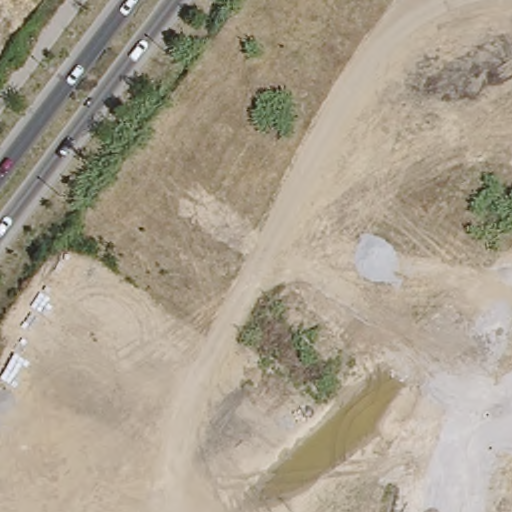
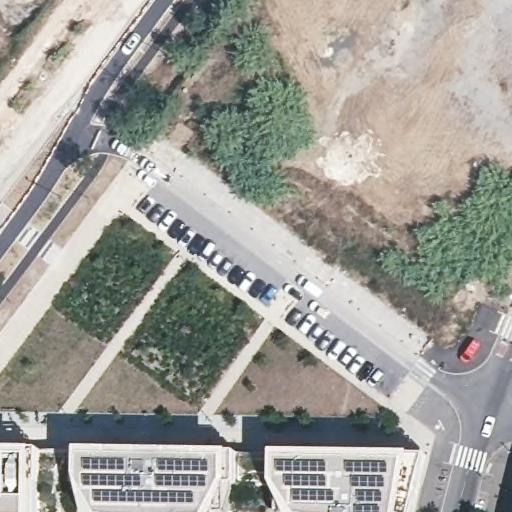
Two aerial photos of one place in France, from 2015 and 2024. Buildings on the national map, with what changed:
new [(236,484),(225,512),(90,512),(83,485),(85,452),(237,455),(236,484)]
new [(40,512),(0,512),(0,453),(40,454),(40,512)]
new [(407,512),(292,512),(278,488),(280,454),(416,458),(407,512)]

